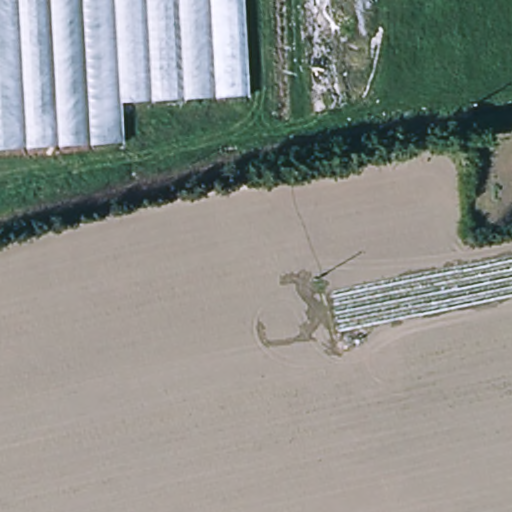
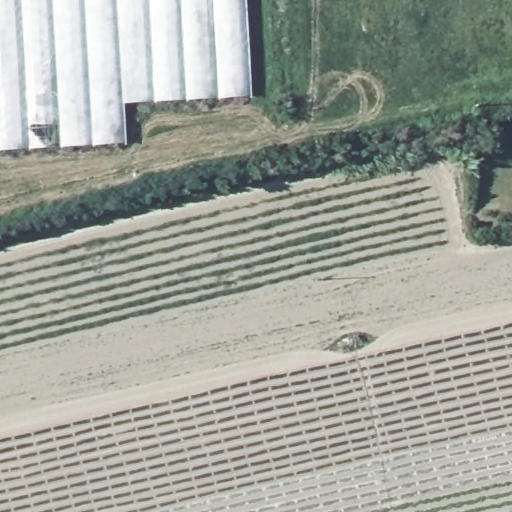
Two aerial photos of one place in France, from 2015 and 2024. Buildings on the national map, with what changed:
unchanged [(123,107),(125,148),(0,155),(0,0),(243,0),(249,99),(123,107)]

